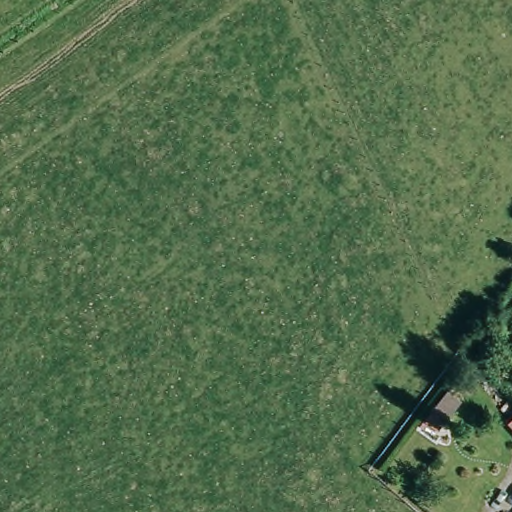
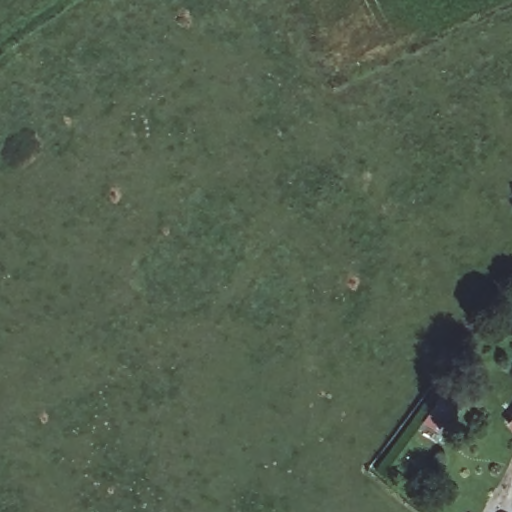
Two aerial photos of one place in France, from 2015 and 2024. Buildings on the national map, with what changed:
unchanged [(455,399),(440,420),(427,411),(442,391),(455,399)]
unchanged [(512,421),(512,430),(507,426),(512,421)]

